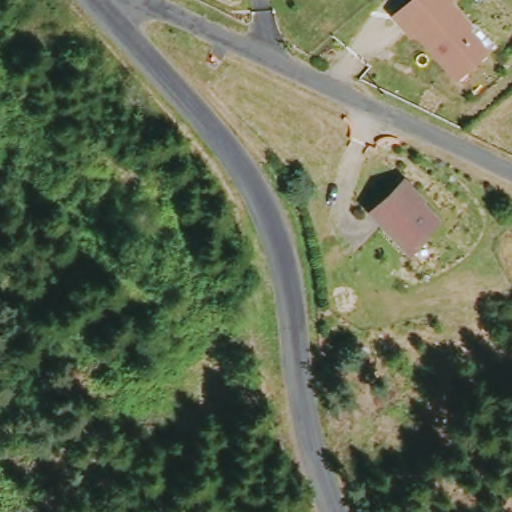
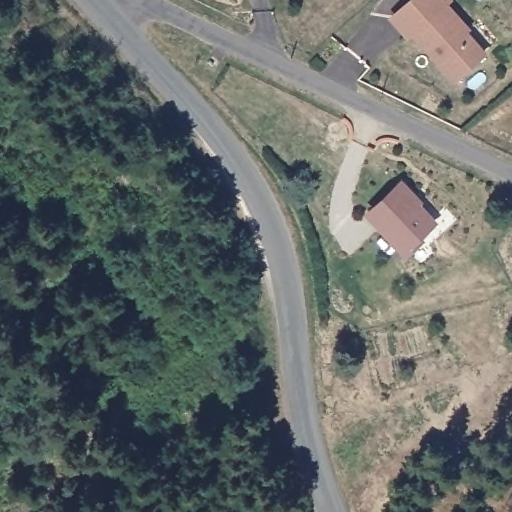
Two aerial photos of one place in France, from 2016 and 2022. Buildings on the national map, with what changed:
unchanged [(415,37),(398,20),(420,0),(456,0),(453,4),(476,29),(472,32),(491,53),(461,81),(420,32),(415,37)]
unchanged [(410,199),(408,200),(429,221),(414,235),(420,242),(408,255),(370,218),(384,204),(384,201),(399,187),(410,199)]

